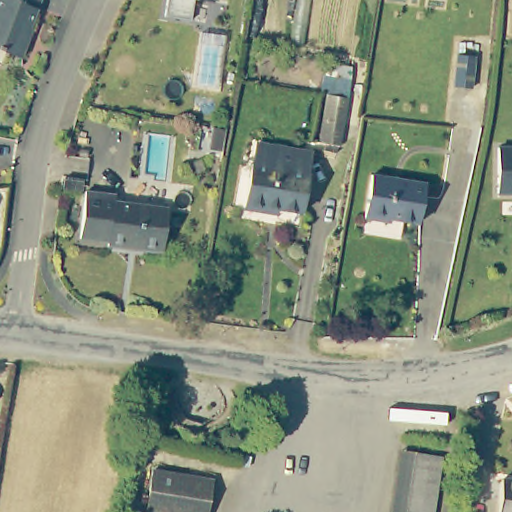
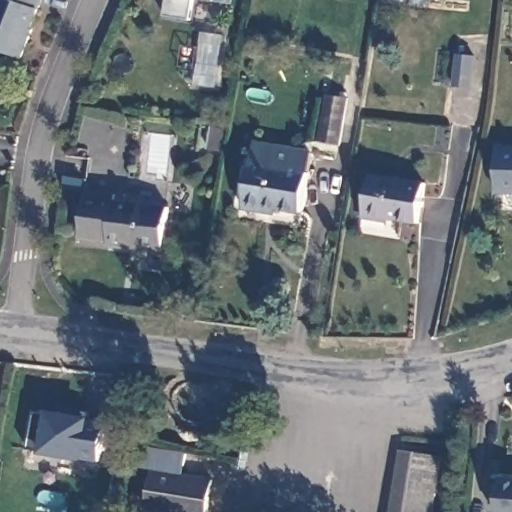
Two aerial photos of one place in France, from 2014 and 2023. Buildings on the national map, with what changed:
unchanged [(19,65),(0,58),(0,0),(39,0),(27,35),(29,35),(19,65)]
unchanged [(164,13),(166,0),(193,0),(190,18),(164,13)]
unchanged [(327,94),(320,92),(322,77),(323,62),(353,67),(347,97),(340,145),(320,145),(327,94)]
unchanged [(267,206),(267,211),(244,207),(245,204),(252,162),(255,144),(312,153),(308,172),(302,212),(267,206)]
unchanged [(512,147),(512,195),(497,194),(498,146),(512,147)]
unchanged [(426,184),(419,223),(391,218),(390,221),(364,217),(372,174),(426,184)]
unchanged [(113,192),(112,200),(170,205),(164,250),(139,249),(139,242),(127,241),(127,248),(107,246),(109,240),(80,237),(85,190),(113,192)]
new [(102,460),(29,447),(35,408),(64,413),(66,407),(91,411),(90,417),(108,421),(102,460)]
unchanged [(400,450),(414,451),(409,512),(394,512),(400,450)]
unchanged [(414,451),(441,453),(436,512),(409,512),(414,451)]
unchanged [(212,480),(207,512),(161,512),(146,510),(153,470),(212,480)]
unchanged [(512,474),(512,512),(499,512),(502,473),(512,474)]

